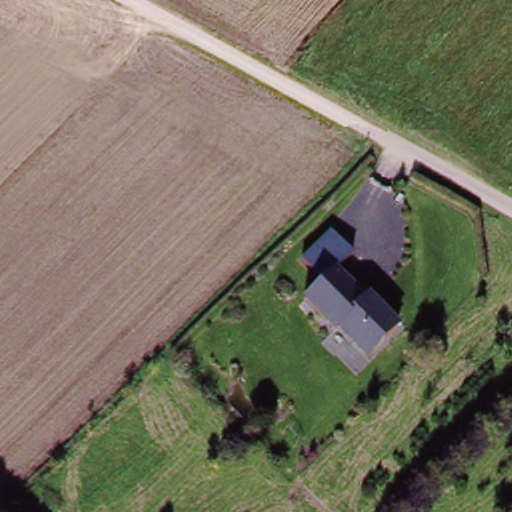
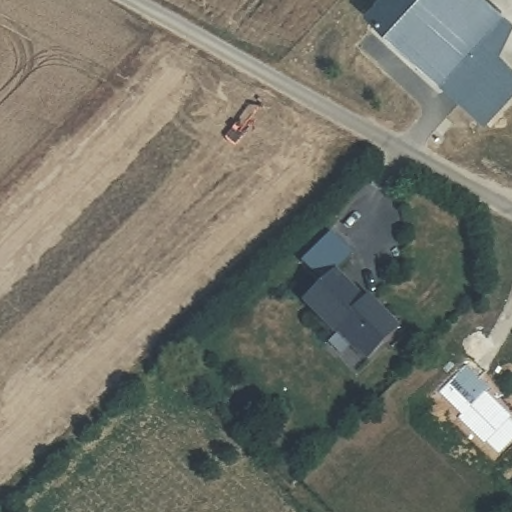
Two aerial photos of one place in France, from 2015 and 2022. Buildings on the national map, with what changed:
new [(490,0),(512,20),(497,52),(512,68),(512,91),(482,123),(361,10),(371,0),(490,0)]
unchanged [(340,332),(333,337),(300,303),(322,281),(300,262),(330,233),(353,257),(338,270),(365,298),(368,296),(400,330),(368,364),(340,332)]

